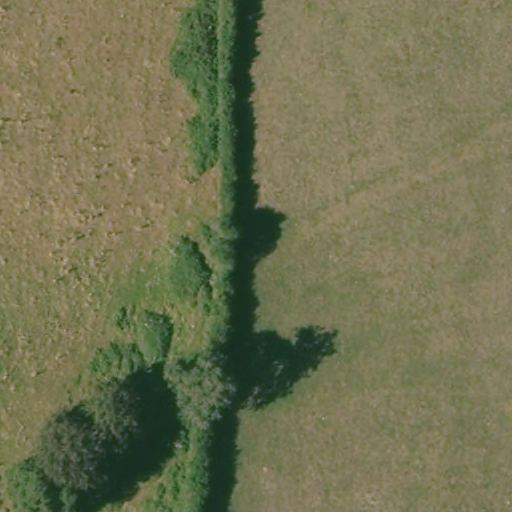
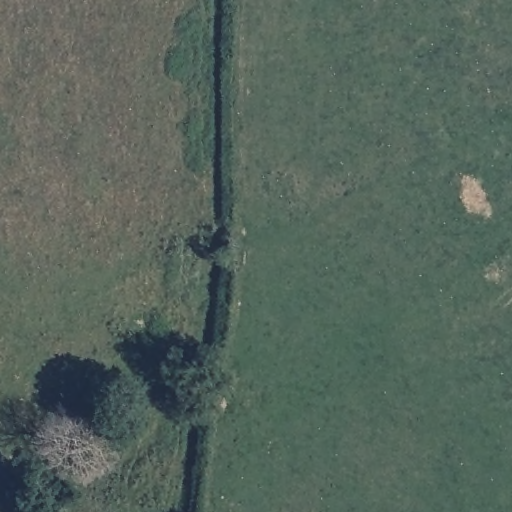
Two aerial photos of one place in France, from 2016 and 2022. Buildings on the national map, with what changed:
[]

